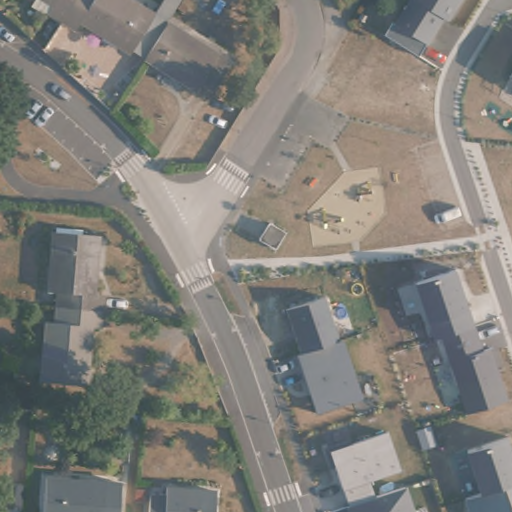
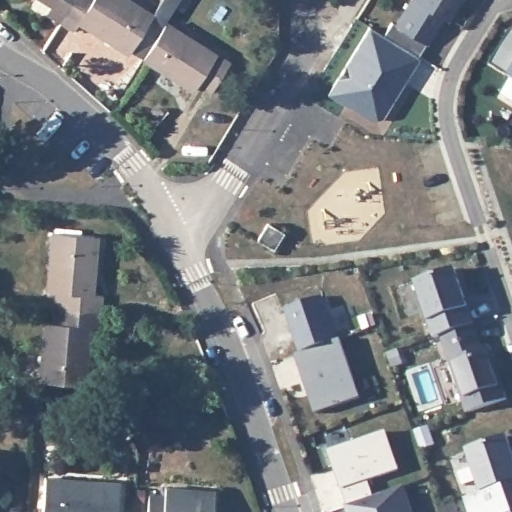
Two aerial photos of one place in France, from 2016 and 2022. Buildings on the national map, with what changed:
unchanged [(61,26),(45,16),(50,8),(38,0),(78,0),(61,26)]
unchanged [(78,0),(125,0),(156,20),(135,54),(104,34),(99,38),(80,27),(74,34),(61,26),(78,0)]
unchanged [(160,0),(183,0),(170,21),(150,56),(139,47),(156,20),(150,16),(160,0)]
unchanged [(443,17),(427,42),(420,56),(386,35),(395,21),(408,0),(460,0),(448,21),(443,17)]
unchanged [(170,21),(232,61),(217,83),(206,77),(198,87),(150,56),(170,21)]
new [(385,36),(420,56),(410,77),(407,75),(393,98),(399,102),(390,119),(377,121),(335,95),(376,28),(385,36)]
unchanged [(510,77),(512,74),(512,79),(510,77)]
unchanged [(59,289),(51,289),(55,230),(97,234),(95,271),(100,274),(99,293),(106,294),(105,314),(57,310),(59,289)]
unchanged [(507,400),(464,414),(440,336),(434,338),(427,322),(415,282),(456,269),(467,303),(473,325),(480,347),(490,346),(507,400)]
unchanged [(362,398),(315,414),(293,355),(298,353),(283,310),(322,298),(336,339),(341,337),(362,398)]
unchanged [(105,314),(103,330),(95,331),(93,352),(89,354),(85,389),(44,386),(47,326),(56,326),(57,310),(105,314)]
unchanged [(414,512),(347,512),(345,505),(340,489),(327,450),(385,430),(398,468),(366,480),(373,497),(403,486),(414,512)]
unchanged [(466,453),(509,439),(512,448),(512,512),(469,512),(464,499),(481,494),(466,453)]
unchanged [(121,483),(119,512),(45,512),(47,478),(121,483)]
unchanged [(158,497),(160,488),(220,493),(218,512),(144,512),(145,498),(158,497)]

